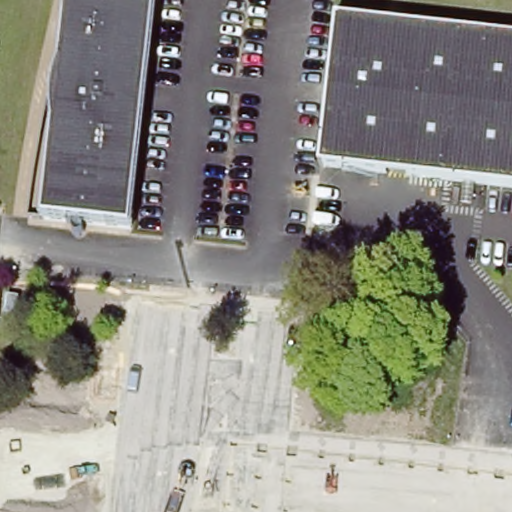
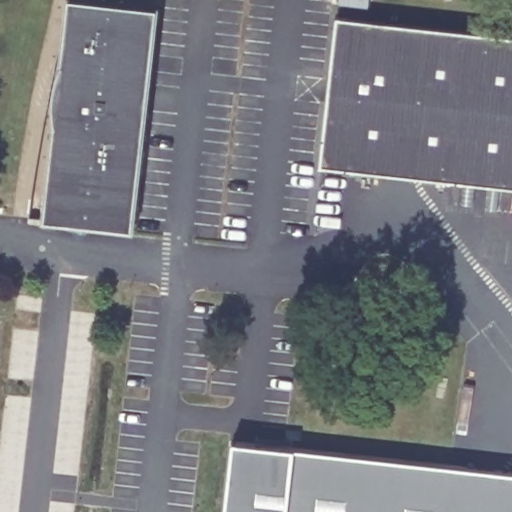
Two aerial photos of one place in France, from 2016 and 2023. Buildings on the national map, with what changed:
unchanged [(66,0),(122,0),(156,4),(134,230),(42,219),(66,0)]
unchanged [(336,12),(512,34),(512,188),(320,165),(336,12)]
new [(223,512),(231,440),(292,447),(512,472),(512,512),(223,512)]

